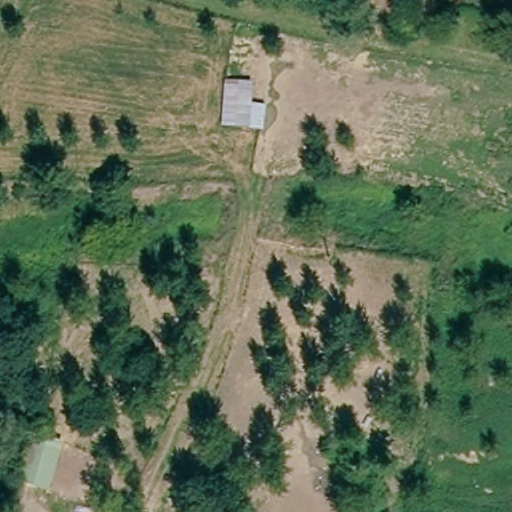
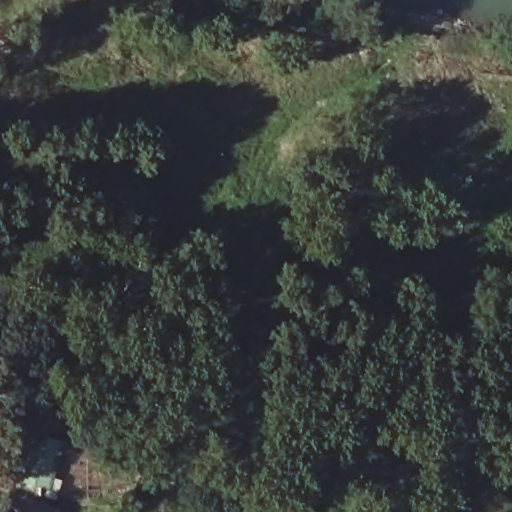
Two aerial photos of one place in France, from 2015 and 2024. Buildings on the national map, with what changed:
demolished [(249,103),(266,105),(264,132),(218,129),(221,80),(251,83),(249,103)]
unchanged [(59,454),(49,497),(16,491),(21,446),(59,454)]

